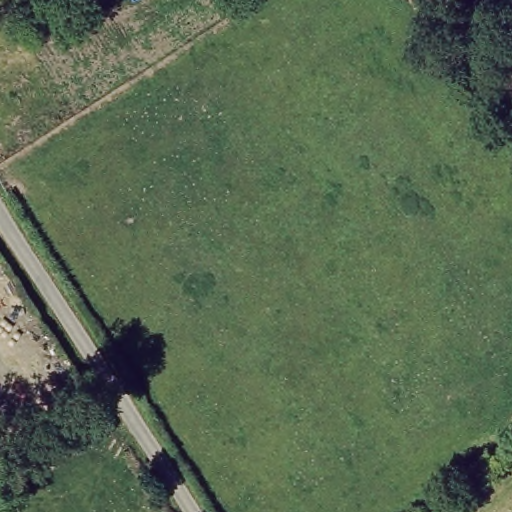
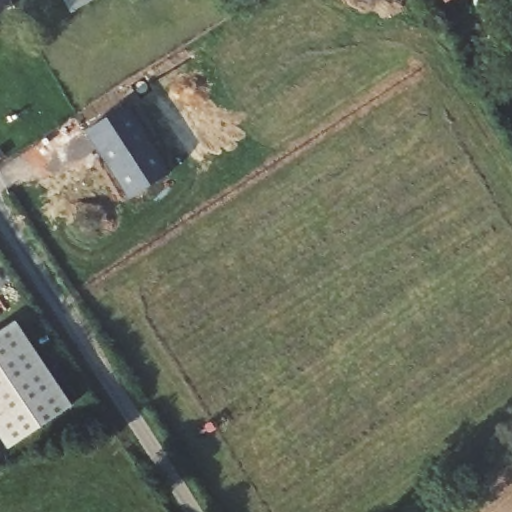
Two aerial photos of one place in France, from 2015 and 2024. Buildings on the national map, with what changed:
new [(0,0),(10,0),(12,5),(0,12),(0,0)]
new [(66,0),(90,0),(72,10),(66,0)]
new [(439,4),(436,0),(446,0),(439,4)]
demolished [(440,4),(438,0),(446,0),(440,4)]
new [(124,106),(169,174),(127,201),(84,131),(124,106)]
new [(0,434),(0,334),(15,324),(73,406),(11,449),(0,434)]

